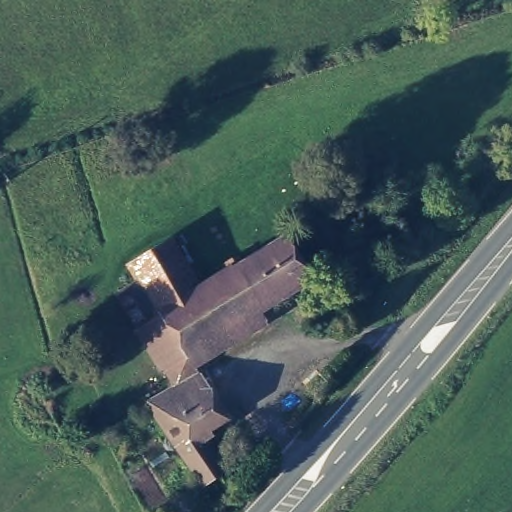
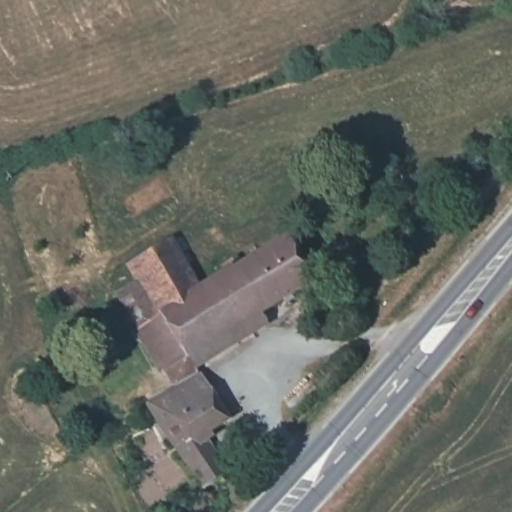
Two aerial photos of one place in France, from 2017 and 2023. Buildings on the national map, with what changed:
unchanged [(171,368),(165,369),(161,364),(155,365),(152,360),(158,357),(141,329),(162,318),(132,267),(175,244),(202,292),(230,275),(226,269),(240,260),(245,267),(288,240),(315,282),(171,368)]
unchanged [(176,450),(150,404),(202,373),(227,417),(204,431),(225,465),(200,482),(176,450)]

